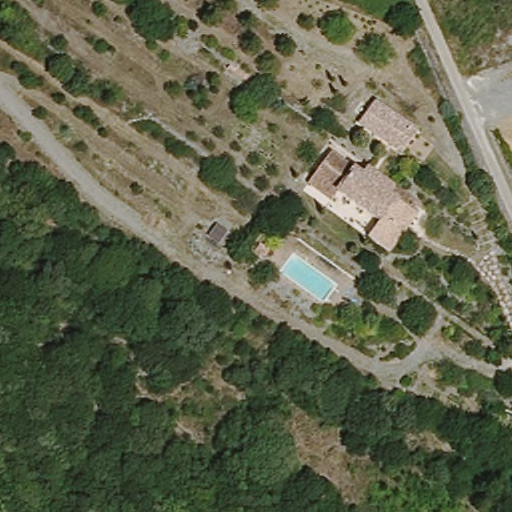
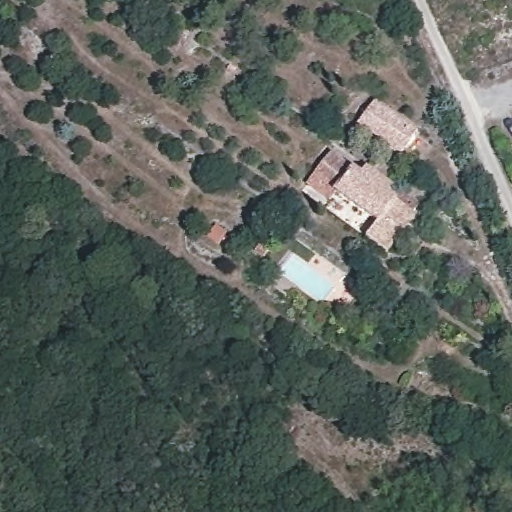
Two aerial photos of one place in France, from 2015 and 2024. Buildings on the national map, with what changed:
unchanged [(415,124),(402,148),(356,121),(370,97),(415,124)]
unchanged [(358,173),(362,165),(391,181),(387,189),(415,205),(391,248),(371,236),(381,218),(336,193),(330,202),(306,188),(314,174),(325,154),(358,173)]

